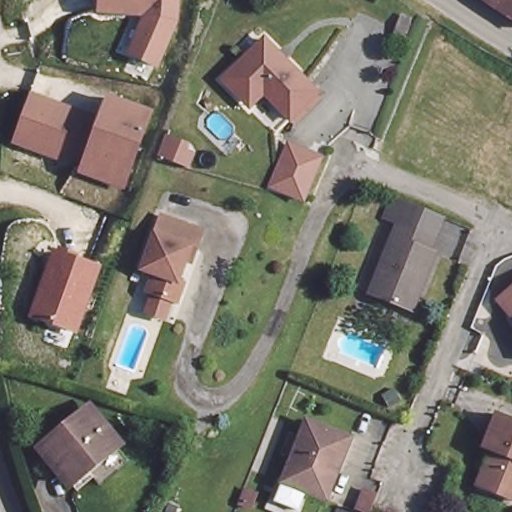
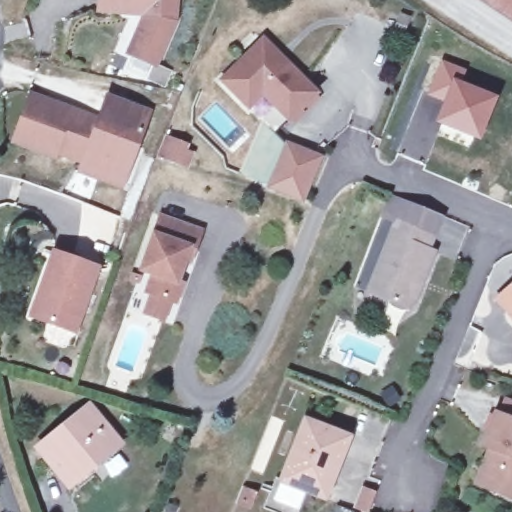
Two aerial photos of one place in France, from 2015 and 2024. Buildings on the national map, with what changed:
unchanged [(127,57),(141,19),(97,14),(99,0),(183,0),(181,21),(158,68),(127,57)]
unchanged [(512,18),(511,17),(484,0),(512,0),(512,18)]
unchanged [(288,118),(260,89),(243,104),(214,75),(257,34),(314,89),(288,118)]
new [(440,59),(466,69),(462,81),(498,96),(479,141),(433,122),(442,102),(425,95),(440,59)]
unchanged [(122,189),(75,173),(78,165),(12,141),(29,92),(97,114),(106,92),(156,111),(122,189)]
new [(166,129),(180,136),(178,139),(192,146),(187,159),(158,149),(166,129)]
unchanged [(306,206),(265,189),(287,140),(326,157),(306,206)]
unchanged [(365,295),(392,221),(380,216),(390,194),(447,216),(434,249),(439,251),(415,313),(365,295)]
unchanged [(202,232),(196,252),(190,250),(179,282),(184,285),(177,303),(149,293),(155,276),(143,272),(162,219),(202,232)]
unchanged [(28,319),(53,250),(105,267),(80,338),(28,319)]
unchanged [(500,303),(496,298),(506,288),(512,283),(512,307),(507,311),(500,303)]
unchanged [(74,418),(87,408),(117,443),(67,485),(53,467),(38,447),(74,418)]
unchanged [(512,496),(480,483),(493,450),(485,446),(497,415),(512,420),(512,496)]
unchanged [(332,502),(305,488),(292,512),(270,512),(263,509),(276,482),(302,419),(354,433),(332,502)]
unchanged [(246,486),(263,492),(257,509),(240,501),(246,486)]

